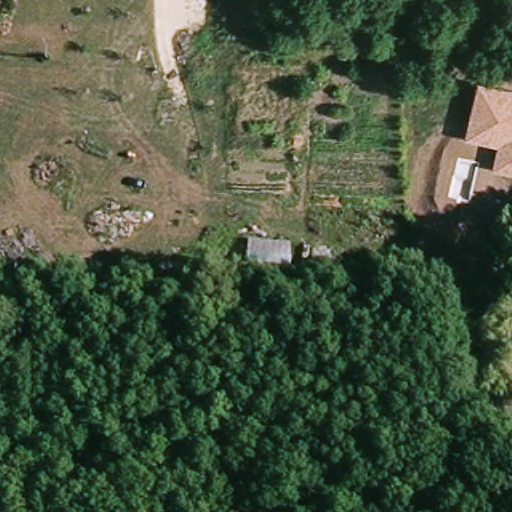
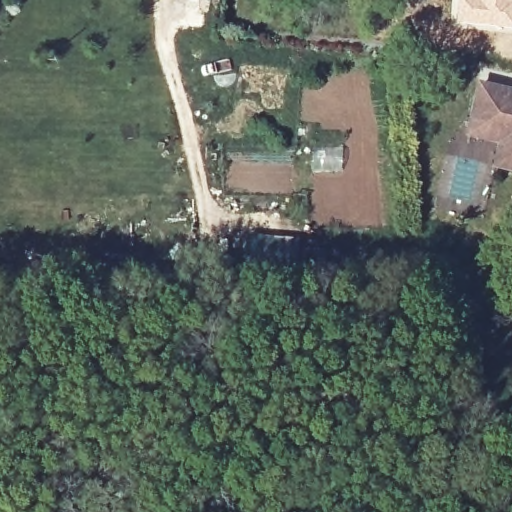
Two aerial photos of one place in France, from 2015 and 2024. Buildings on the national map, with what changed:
new [(512,0),(512,30),(451,23),(454,0),(512,0)]
unchanged [(512,173),(492,169),(498,146),(464,139),(478,81),(512,89),(512,173)]
unchanged [(289,254),(289,277),(247,278),(247,253),(289,254)]

